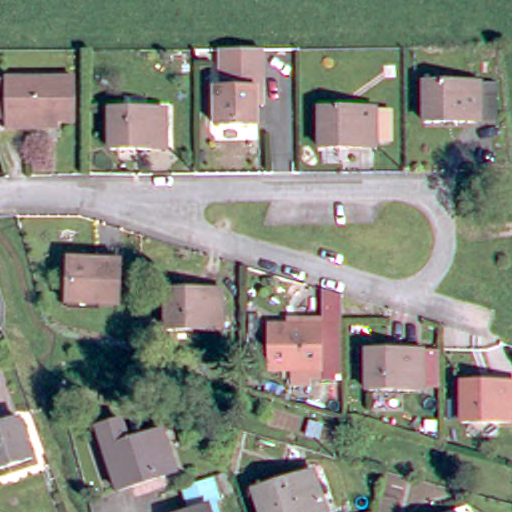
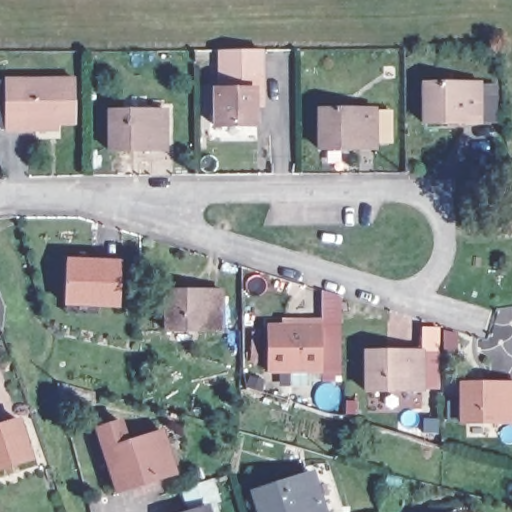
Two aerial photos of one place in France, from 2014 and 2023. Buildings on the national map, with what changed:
unchanged [(250,95),(250,131),(207,131),(207,94),(214,94),(214,79),(218,79),(218,54),(256,54),(256,79),(255,94),(250,95)]
unchanged [(75,78),(73,117),(40,117),(39,124),(7,123),(7,79),(75,78)]
unchanged [(482,81),(482,122),(427,122),(427,82),(482,81)]
unchanged [(378,106),(378,149),(325,148),(323,104),(378,106)]
unchanged [(156,115),(156,155),(104,155),(104,115),(156,115)]
unchanged [(118,262),(118,304),(67,302),(68,262),(118,262)]
unchanged [(219,290),(220,327),(165,327),(165,290),(219,290)]
unchanged [(271,371),(271,327),(294,327),(295,318),(323,319),(341,319),(341,372),(323,372),(271,371)]
unchanged [(430,354),(430,393),(375,392),(374,353),(430,354)]
unchanged [(459,380),(512,380),(512,419),(464,419),(461,423),(455,426),(450,425),(450,412),(458,412),(459,380)]
unchanged [(93,426),(121,419),(128,437),(158,429),(173,472),(150,480),(113,490),(93,426)]
unchanged [(13,420),(25,461),(0,467),(0,424),(13,420)]
unchanged [(435,423),(436,441),(421,442),(420,424),(435,423)]
unchanged [(310,476),(323,512),(265,512),(258,492),(310,476)]

